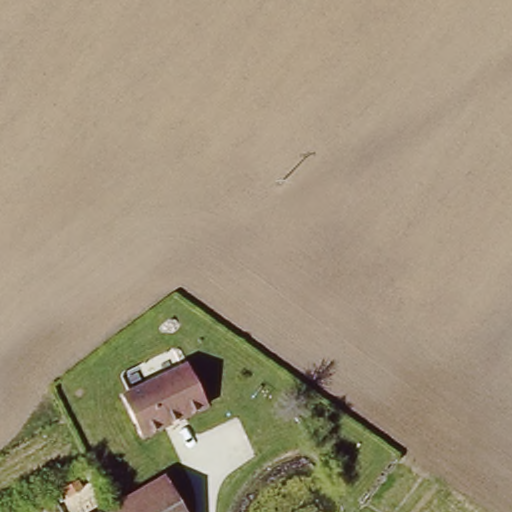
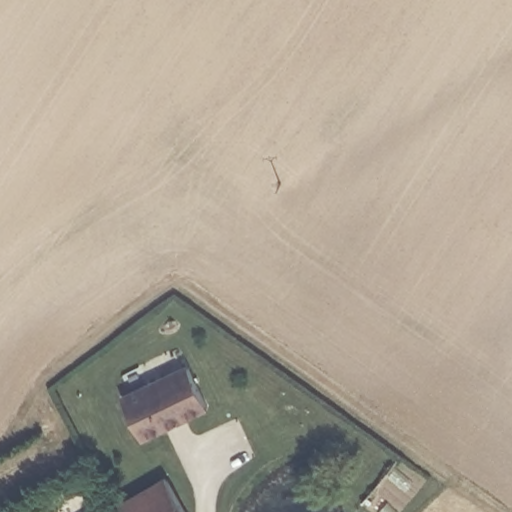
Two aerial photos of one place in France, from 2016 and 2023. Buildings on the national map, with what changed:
unchanged [(188,351),(211,401),(144,432),(123,385),(188,351)]
unchanged [(180,512),(100,512),(160,477),(180,512)]

